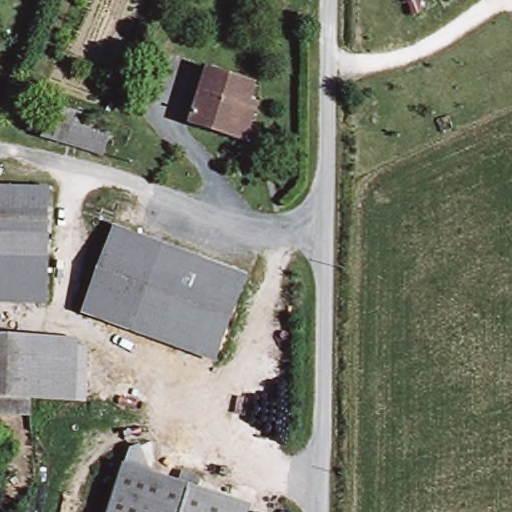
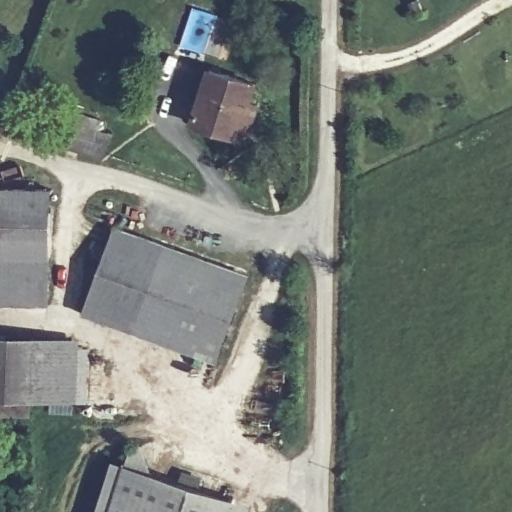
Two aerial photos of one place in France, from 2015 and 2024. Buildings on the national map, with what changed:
unchanged [(190,119),(205,63),(250,75),(245,93),(254,97),(244,133),(190,119)]
unchanged [(66,124),(109,138),(105,147),(102,153),(60,141),(63,133),(66,124)]
unchanged [(48,199),(0,196),(0,171),(49,173),(48,199)]
unchanged [(44,247),(0,245),(0,196),(48,199),(44,247)]
unchanged [(249,274),(217,357),(85,307),(118,224),(249,274)]
unchanged [(42,300),(0,298),(0,245),(44,247),(42,300)]
unchanged [(74,403),(0,398),(0,323),(80,325),(74,403)]
unchanged [(130,463),(235,502),(231,512),(112,512),(130,463)]

